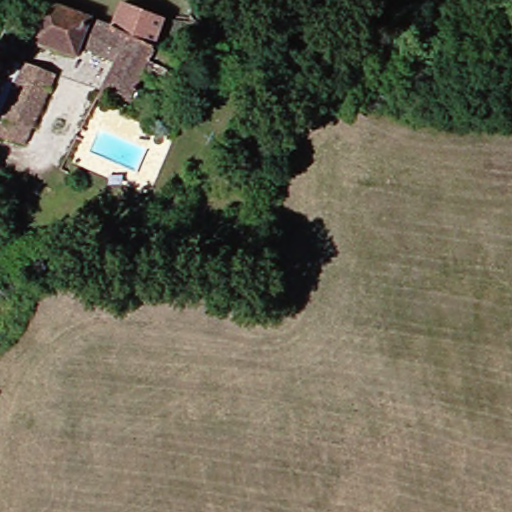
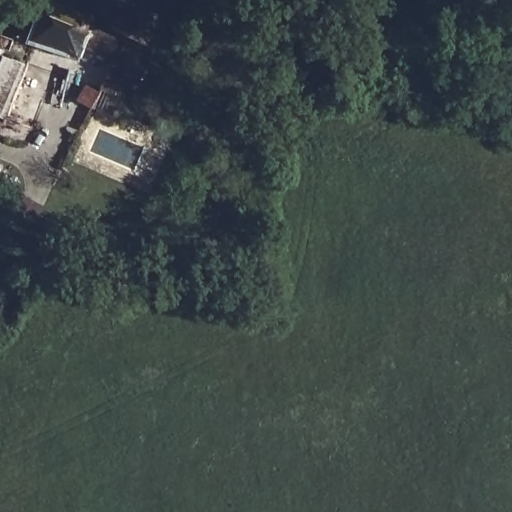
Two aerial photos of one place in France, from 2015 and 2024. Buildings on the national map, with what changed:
unchanged [(124,61),(87,49),(83,63),(36,48),(47,14),(52,0),(62,0),(96,11),(94,17),(116,25),(126,2),(178,20),(163,55),(136,104),(111,94),(124,61)]
unchanged [(8,132),(11,121),(29,65),(60,75),(42,131),(38,142),(8,132)]

